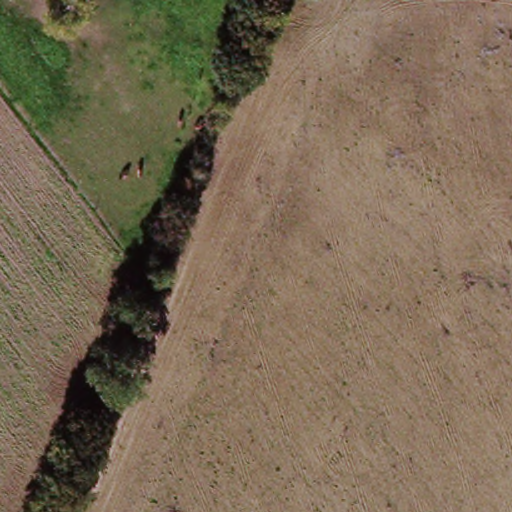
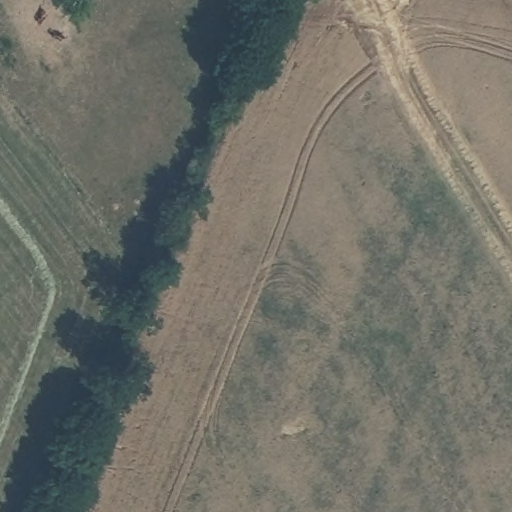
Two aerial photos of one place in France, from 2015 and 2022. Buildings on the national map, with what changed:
unchanged [(313,2),(310,0),(314,0),(313,2)]

